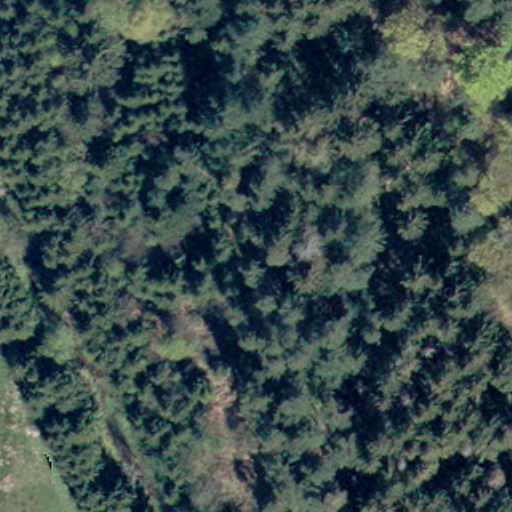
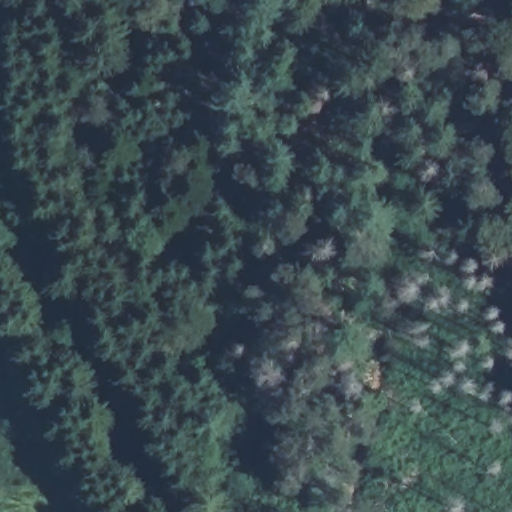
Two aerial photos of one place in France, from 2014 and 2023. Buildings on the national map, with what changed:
[]

